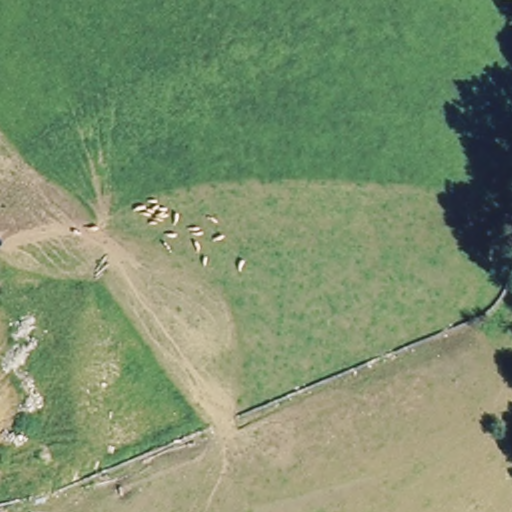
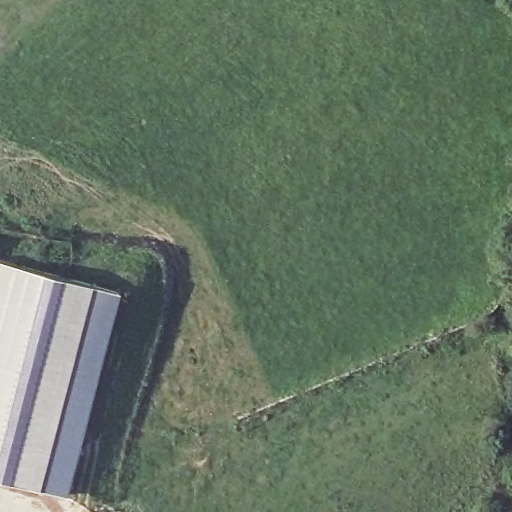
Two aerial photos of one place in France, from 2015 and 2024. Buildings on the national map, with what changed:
new [(69,493),(0,476),(0,257),(122,288),(69,493)]

